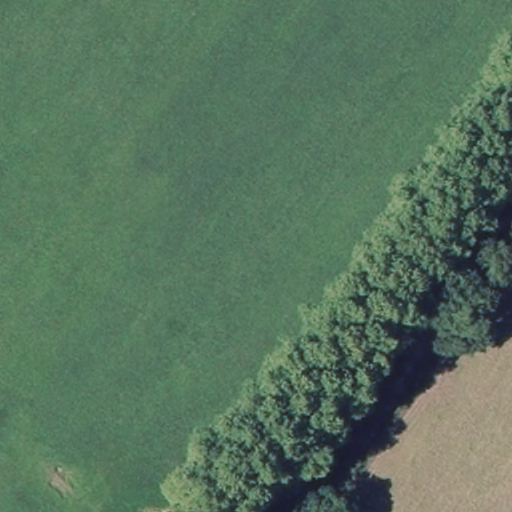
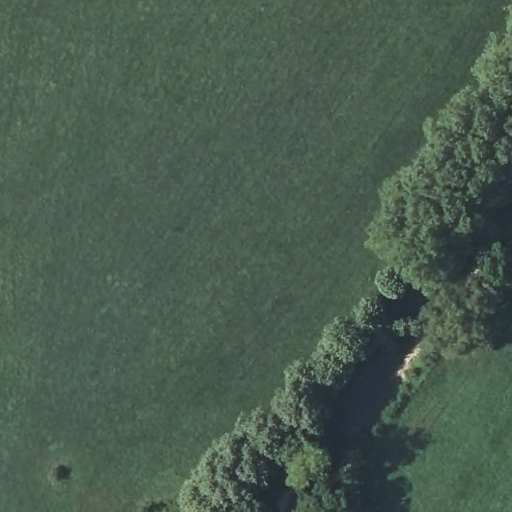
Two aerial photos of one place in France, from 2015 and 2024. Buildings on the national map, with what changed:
[]

